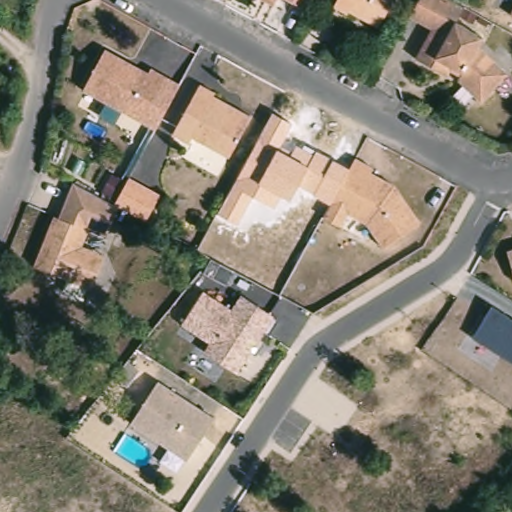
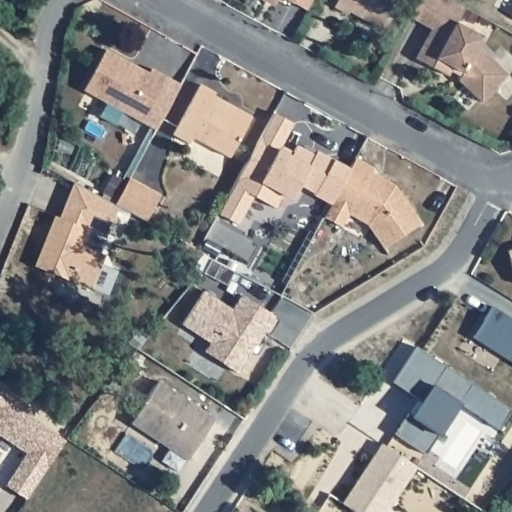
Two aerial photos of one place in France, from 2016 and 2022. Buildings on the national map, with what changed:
unchanged [(273,2),(268,0),(274,0),(273,2)]
unchanged [(304,11),(283,0),(310,0),(304,11)]
unchanged [(341,0),(397,0),(381,28),(352,12),(350,15),(337,8),(341,0)]
unchanged [(448,71),(417,53),(431,27),(409,15),(418,0),(446,0),(462,8),(454,24),(481,39),(476,48),(505,76),(479,103),(457,81),(461,72),(451,66),(448,71)]
unchanged [(512,10),(512,18),(509,16),(512,10)]
unchanged [(164,110),(152,131),(138,123),(80,91),(102,51),(145,75),(148,70),(163,78),(177,86),(164,110)]
unchanged [(226,158),(190,138),(187,144),(171,135),(198,86),(212,94),(210,97),(233,109),(248,117),(226,158)]
unchanged [(298,183),(289,200),(279,194),(271,207),(252,197),(236,224),(216,213),(272,113),(293,126),(282,147),(293,152),(299,143),(351,171),(331,207),(298,183)]
unchanged [(373,174),(378,177),(390,184),(396,187),(420,225),(384,250),(369,225),(350,215),(343,228),(325,218),(357,160),(375,170),(373,174)]
unchanged [(143,220),(112,203),(115,198),(100,190),(109,173),(124,182),(127,177),(158,194),(143,220)]
unchanged [(73,184),(117,206),(103,235),(87,228),(61,218),(73,184)]
unchanged [(100,263),(90,288),(34,265),(54,215),(87,228),(80,245),(84,246),(104,254),(100,263)]
unchanged [(512,255),(512,269),(507,257),(512,255)]
unchanged [(237,373),(202,351),(208,341),(179,323),(202,287),(232,308),(241,293),(277,316),(237,373)]
unchanged [(38,302),(32,313),(12,303),(18,292),(38,302)]
unchanged [(493,305),(512,317),(512,362),(471,336),(493,305)]
new [(512,416),(500,434),(461,407),(427,458),(396,438),(410,417),(413,419),(423,405),(394,386),(418,350),(512,412),(512,416)]
unchanged [(188,460),(130,423),(158,380),(215,417),(188,460)]
new [(24,455),(0,439),(0,401),(62,442),(39,477),(23,501),(3,487),(19,463),(24,455)]
new [(419,402),(423,405),(413,419),(410,417),(419,402)]
new [(380,444),(414,466),(385,512),(356,512),(341,502),(380,444)]

